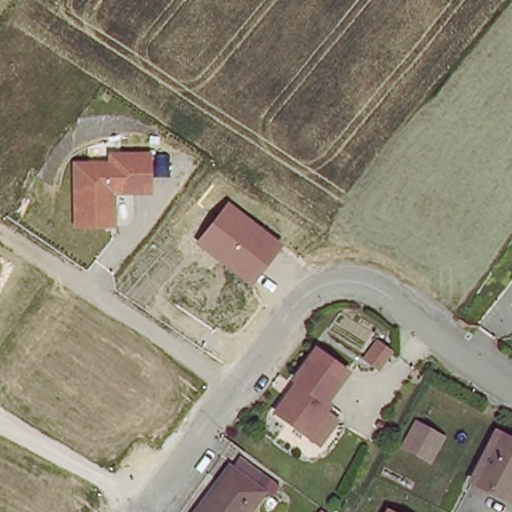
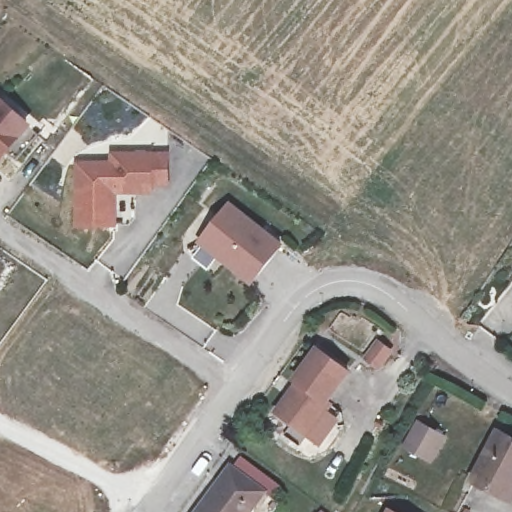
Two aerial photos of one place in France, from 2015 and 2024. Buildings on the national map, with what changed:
new [(35,125),(0,166),(0,95),(35,125)]
unchanged [(109,161),(109,152),(152,152),(174,151),(175,186),(152,186),(151,194),(117,194),(117,227),(74,227),(73,162),(109,161)]
unchanged [(229,202),(283,244),(252,284),(196,242),(229,202)]
unchanged [(290,384),(313,352),(344,375),(322,404),(326,407),(304,438),(272,415),(293,387),(290,384)]
unchanged [(415,417),(447,437),(432,465),(400,443),(415,417)]
unchanged [(512,491),(507,499),(470,480),(501,430),(512,437),(512,491)]
unchanged [(262,492),(248,512),(193,512),(227,465),(262,492)]
unchanged [(393,512),(388,512),(389,510),(393,512)]

